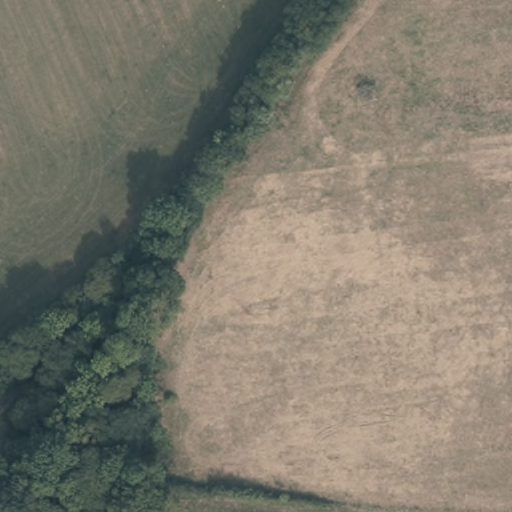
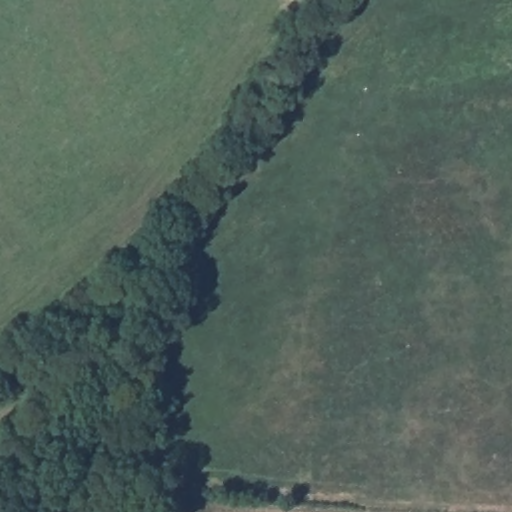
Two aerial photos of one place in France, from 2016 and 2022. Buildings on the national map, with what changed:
[]

